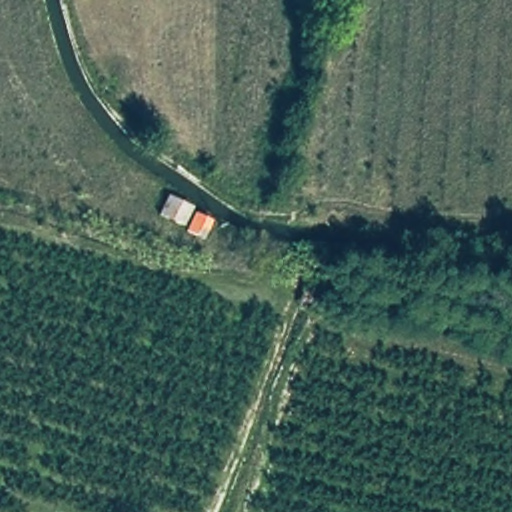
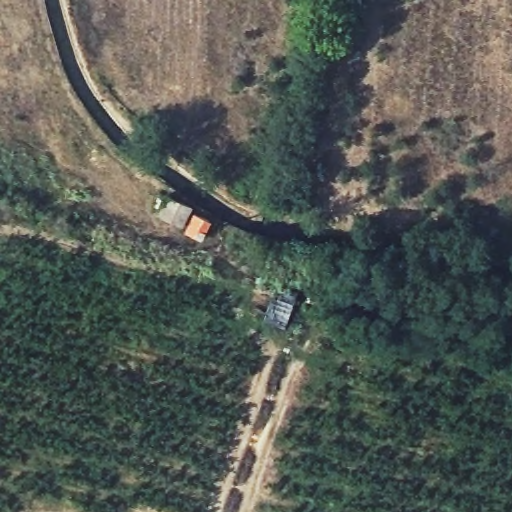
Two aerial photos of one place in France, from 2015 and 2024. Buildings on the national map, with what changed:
unchanged [(208,221),(200,238),(153,218),(161,197),(208,221)]

